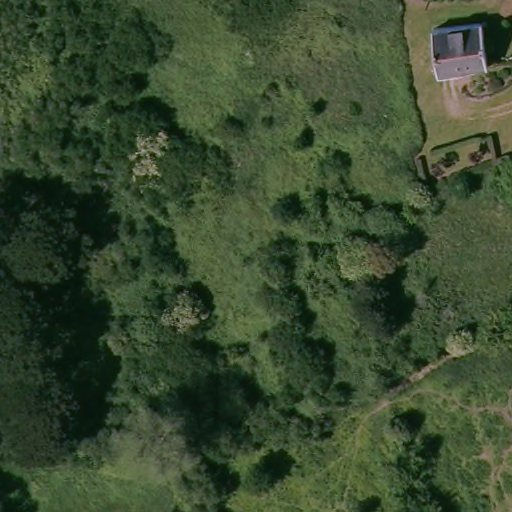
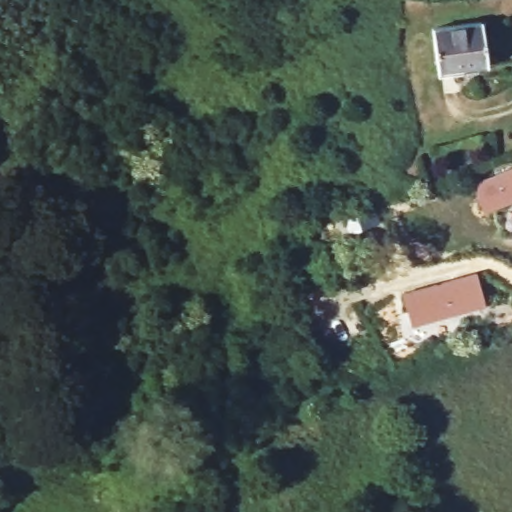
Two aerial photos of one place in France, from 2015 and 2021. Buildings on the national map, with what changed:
unchanged [(488,66),(439,73),(433,30),(482,22),(488,66)]
new [(473,184),(512,168),(512,202),(484,212),(473,184)]
new [(368,217),(369,233),(339,236),(337,220),(368,217)]
new [(486,306),(408,328),(399,297),(476,273),(486,306)]

